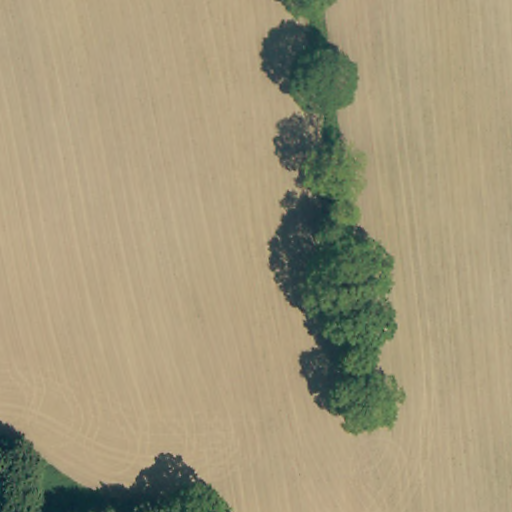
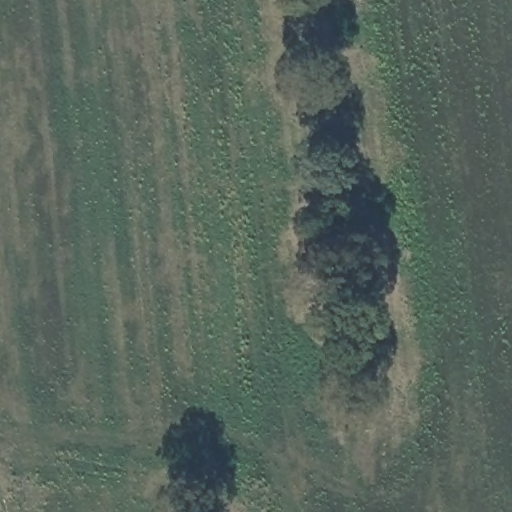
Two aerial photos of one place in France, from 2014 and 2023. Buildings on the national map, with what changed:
[]

